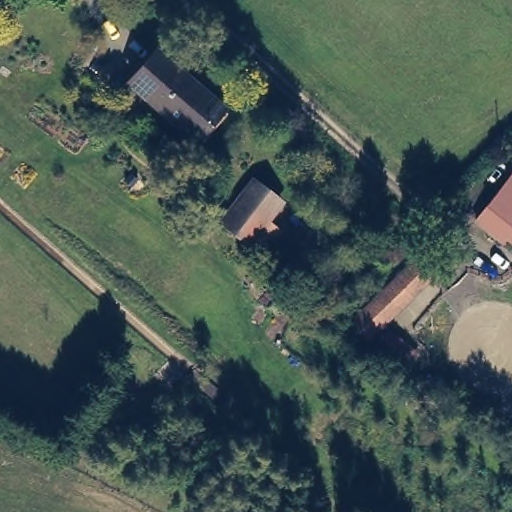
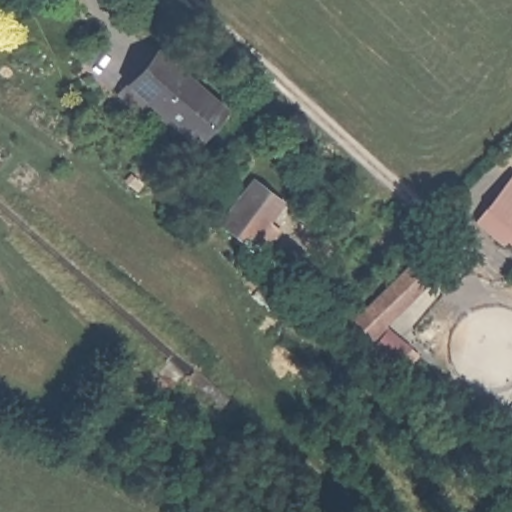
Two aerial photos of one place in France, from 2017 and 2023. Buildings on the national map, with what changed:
unchanged [(131,79),(159,47),(186,72),(225,105),(198,137),(169,112),(160,121),(143,105),(123,89),(131,79)]
unchanged [(504,184),(501,181),(505,175),(512,180),(512,247),(508,244),(504,250),(474,226),(504,184)]
unchanged [(252,184),(279,204),(246,244),(220,225),(252,184)]
unchanged [(413,359),(408,354),(405,356),(379,335),(356,315),(419,255),(432,268),(418,280),(383,316),(417,346),(422,350),(413,359)]

